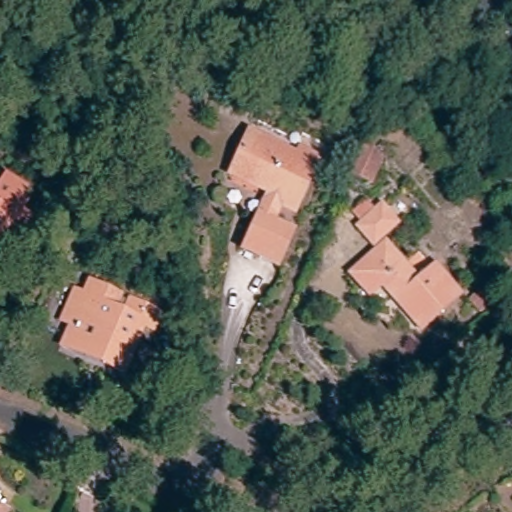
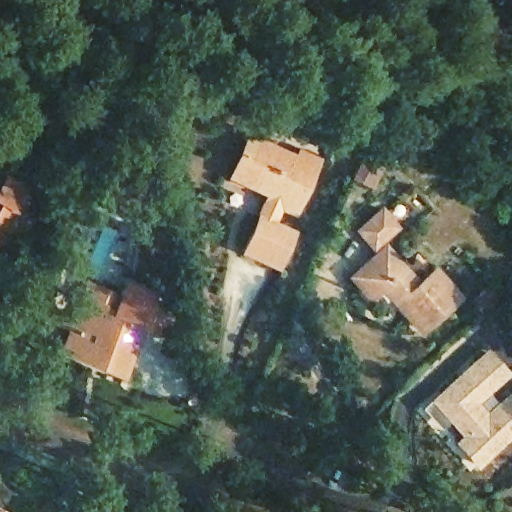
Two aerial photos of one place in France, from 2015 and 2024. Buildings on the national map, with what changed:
unchanged [(242,182),(261,143),(297,160),(300,154),(317,161),(293,213),(280,207),(271,224),(292,234),(276,267),(243,252),(270,195),(242,182)]
unchanged [(369,187),(351,179),(366,145),(381,162),(369,187)]
unchanged [(2,179),(20,190),(10,209),(19,215),(8,235),(4,232),(0,238),(0,181),(2,179)]
unchanged [(372,246),(359,231),(381,213),(394,228),(372,246)]
unchanged [(371,298),(352,278),(386,249),(418,286),(435,272),(458,298),(421,331),(409,318),(416,312),(405,300),(398,306),(382,288),(371,298)]
unchanged [(488,292),(495,302),(480,313),(472,303),(488,292)]
unchanged [(62,354),(70,337),(62,334),(73,310),(80,313),(86,299),(151,327),(147,338),(135,333),(114,382),(92,373),(60,360),(62,354)]
new [(461,436),(447,421),(440,426),(423,405),(427,401),(488,345),(512,373),(480,402),(487,410),(512,388),(512,436),(476,466),(456,440),(461,436)]

